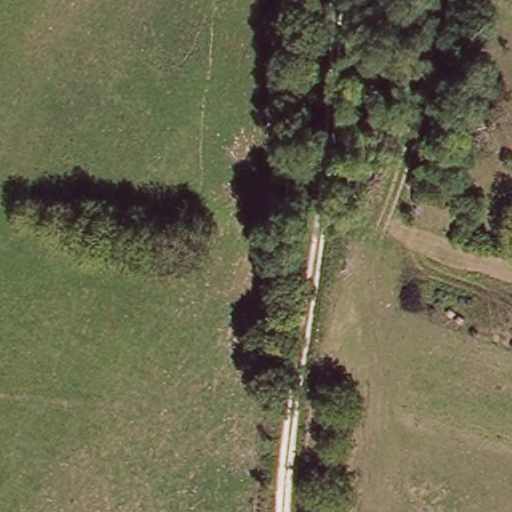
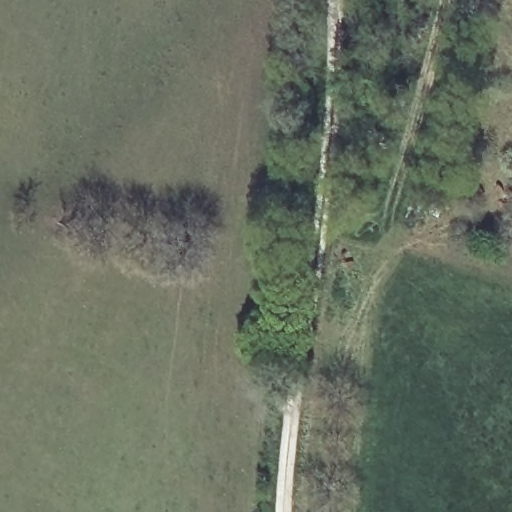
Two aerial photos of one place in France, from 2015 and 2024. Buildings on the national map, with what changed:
[]

